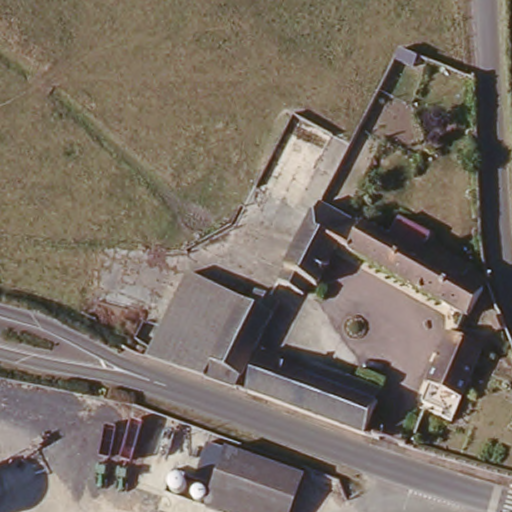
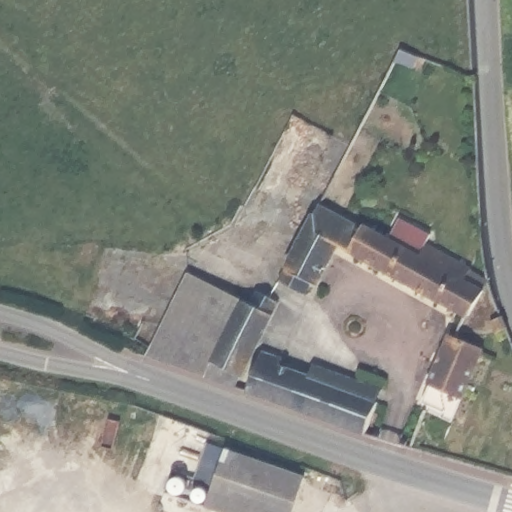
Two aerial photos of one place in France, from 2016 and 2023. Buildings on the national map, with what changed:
unchanged [(402,44),(414,51),(409,61),(396,56),(402,44)]
unchanged [(315,211),(356,233),(358,230),(416,262),(422,251),(466,276),(459,287),(479,298),(464,325),(463,324),(334,252),(311,294),(304,291),(298,301),(273,289),(315,211)]
unchanged [(163,360),(144,353),(189,268),(244,295),(204,375),(163,360)]
unchanged [(244,295),(249,298),(255,287),(271,293),(278,299),(259,340),(235,386),(204,375),(244,295)]
unchanged [(497,328),(492,317),(504,312),(509,324),(497,328)]
unchanged [(431,390),(427,388),(450,336),(458,340),(484,351),(460,402),(453,417),(431,407),(425,404),(431,390)]
unchanged [(262,351),(281,358),(279,364),(379,399),(366,432),(247,389),(262,351)]
unchanged [(227,451),(307,476),(296,512),(216,512),(208,509),(227,451)]

